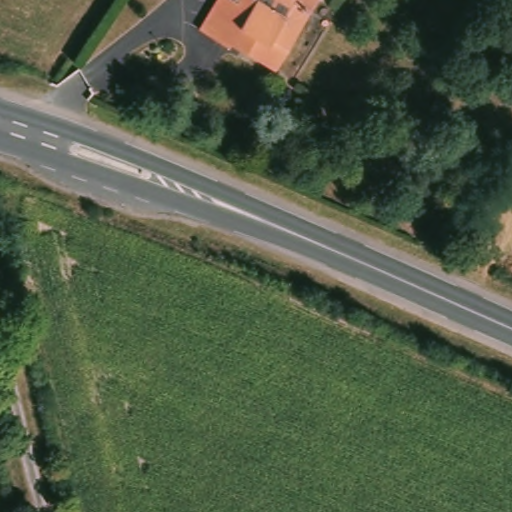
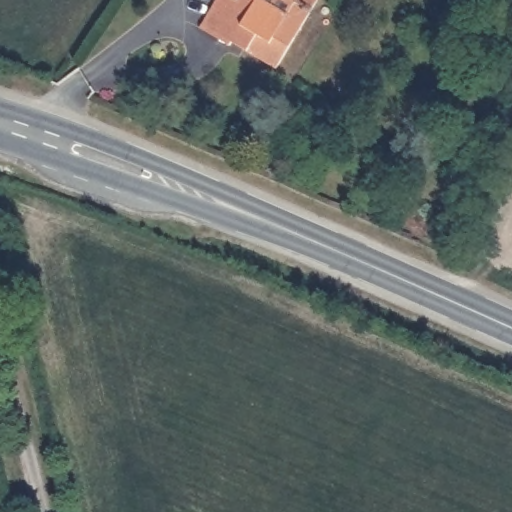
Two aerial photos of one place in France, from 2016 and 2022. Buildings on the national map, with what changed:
unchanged [(225,26),(239,35),(232,46),(227,53),(196,35),(217,0),(227,0),(239,7),(225,26)]
unchanged [(277,74),(232,46),(239,35),(225,26),(239,7),(227,0),(253,0),(303,32),(277,74)]
unchanged [(253,0),(324,0),(303,32),(253,0)]

